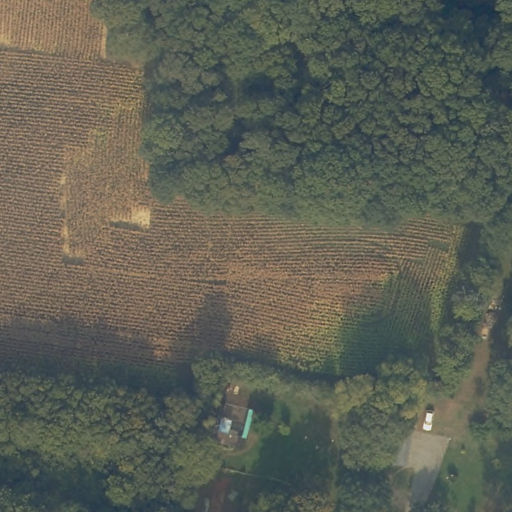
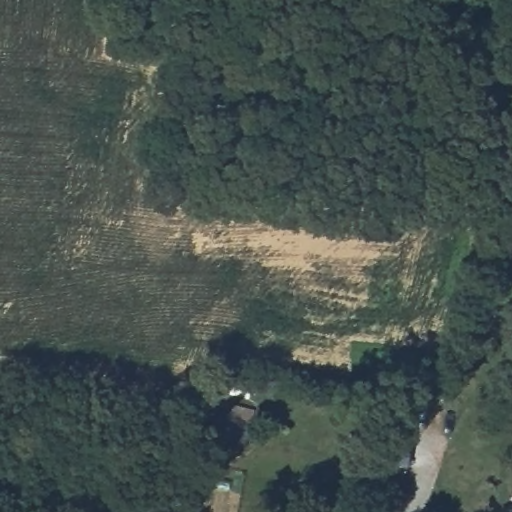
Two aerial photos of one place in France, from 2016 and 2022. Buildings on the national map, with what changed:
unchanged [(241,402),(234,424),(257,431),(255,441),(215,430),(223,402),(241,402)]

